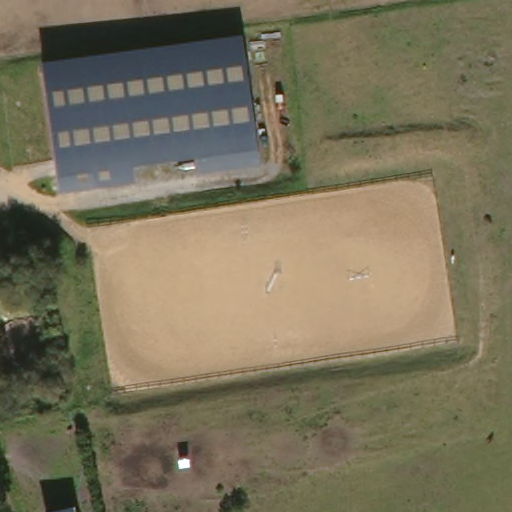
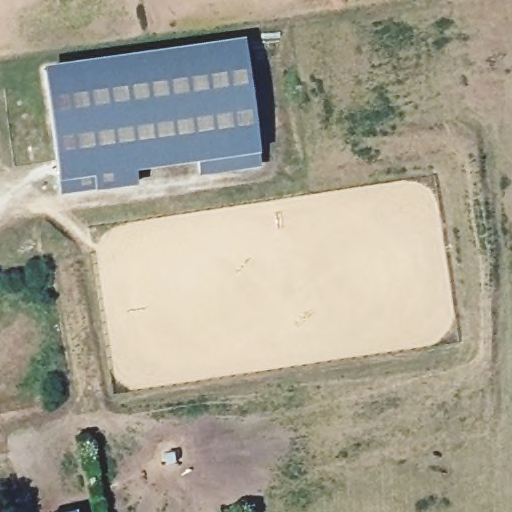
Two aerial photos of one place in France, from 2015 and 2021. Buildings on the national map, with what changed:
unchanged [(44,60),(241,34),(262,163),(200,172),(197,157),(139,162),(141,181),(58,191),(44,60)]
unchanged [(75,506),(77,512),(49,512),(75,506)]

